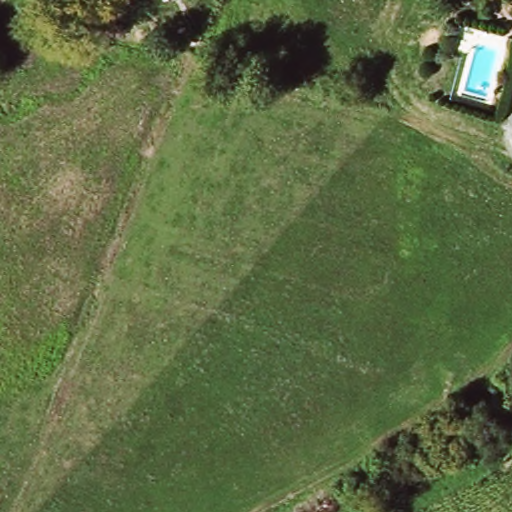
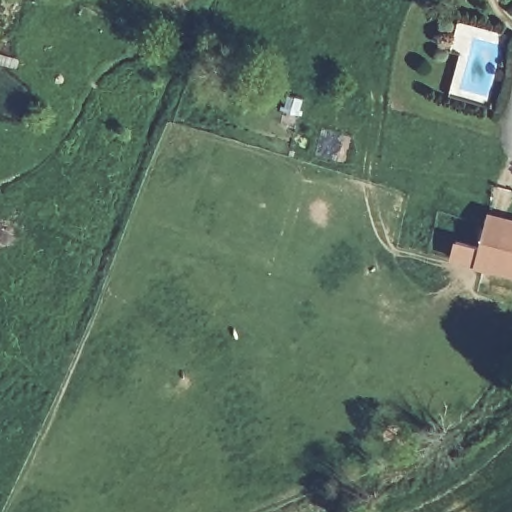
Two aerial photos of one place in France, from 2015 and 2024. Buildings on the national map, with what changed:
new [(473,267),(488,212),(512,218),(512,278),(473,267)]

